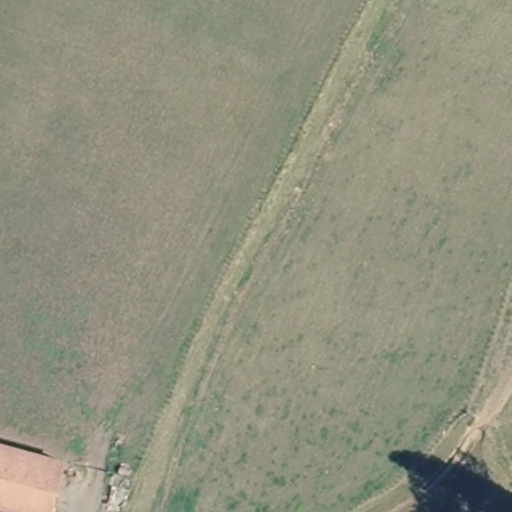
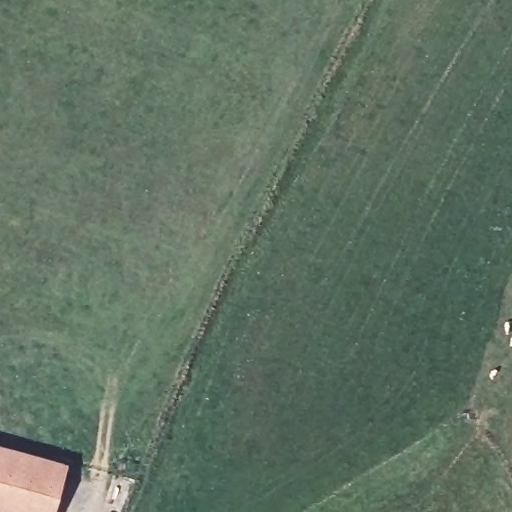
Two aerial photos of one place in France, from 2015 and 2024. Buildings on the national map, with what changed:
unchanged [(49,509),(48,512),(9,512),(0,510),(0,448),(61,464),(49,509)]

